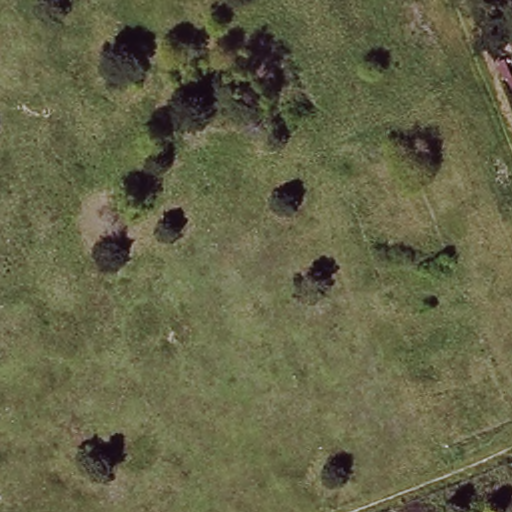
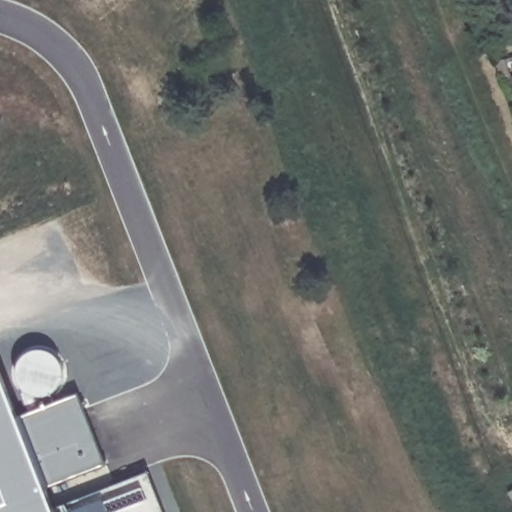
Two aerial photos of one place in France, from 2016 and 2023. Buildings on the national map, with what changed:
new [(3,355),(24,421),(82,393),(112,478),(144,470),(160,512),(0,512),(0,356),(3,355)]

